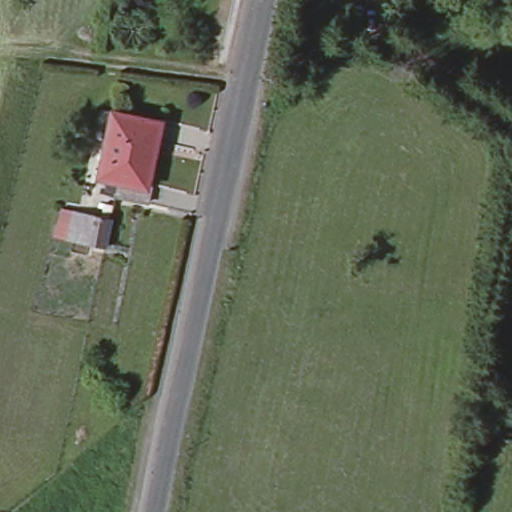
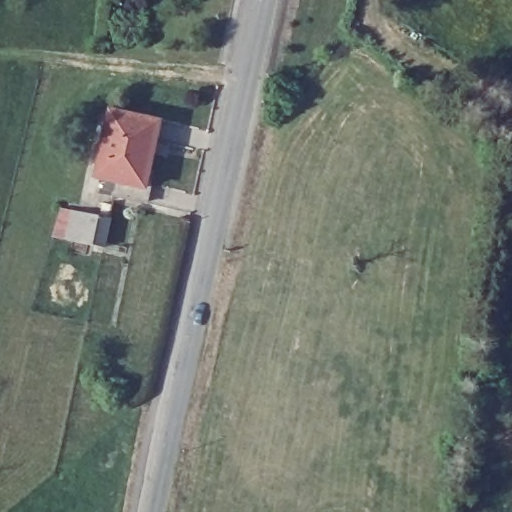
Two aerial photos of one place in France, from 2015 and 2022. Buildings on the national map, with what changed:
unchanged [(103,186),(105,177),(95,174),(109,108),(157,117),(144,185),(142,199),(114,193),(114,188),(103,186)]
unchanged [(80,241),(63,237),(70,207),(87,212),(100,215),(102,202),(112,203),(109,217),(102,247),(80,241)]

